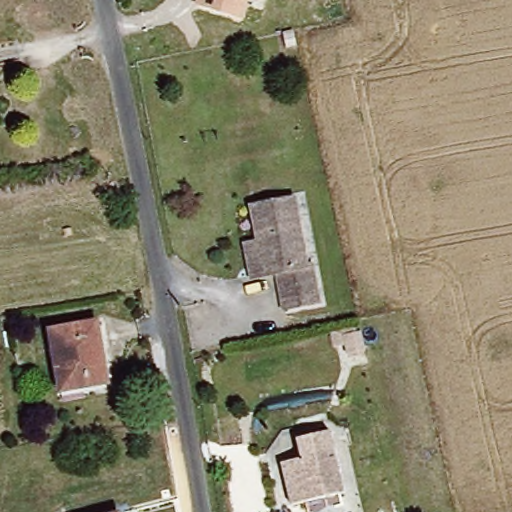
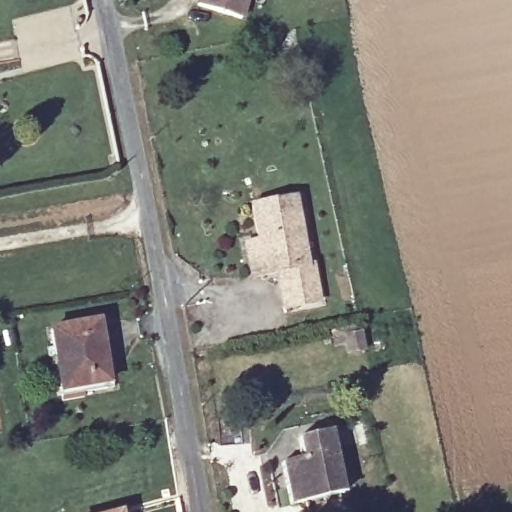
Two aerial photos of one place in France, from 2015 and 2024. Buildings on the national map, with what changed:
unchanged [(243,20),(196,3),(198,0),(250,0),(243,20)]
unchanged [(250,243),(266,240),(258,205),(300,196),(318,270),(325,269),(333,303),(296,311),(287,275),(276,277),(259,281),(250,243)]
unchanged [(59,344),(55,324),(99,317),(106,360),(116,358),(121,383),(69,392),(59,344)]
unchanged [(336,471),(281,479),(278,465),(300,462),(296,442),(330,436),(336,471)]
unchanged [(340,498),(286,507),(281,479),(336,471),(340,498)]

